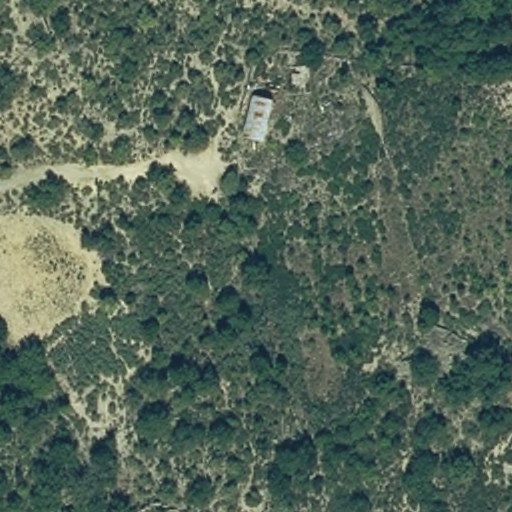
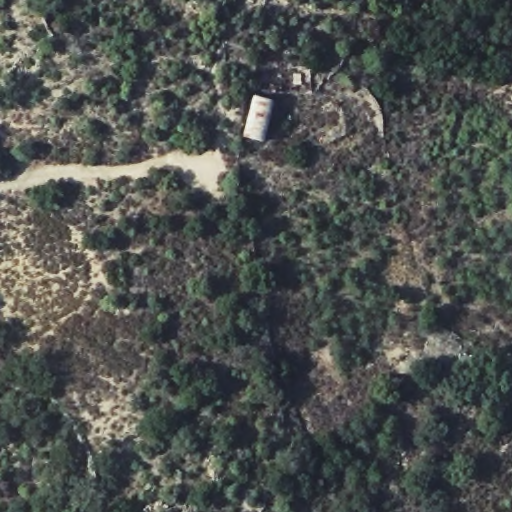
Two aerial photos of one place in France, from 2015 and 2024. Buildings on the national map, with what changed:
unchanged [(239,136),(254,94),(280,102),(267,144),(239,136)]

